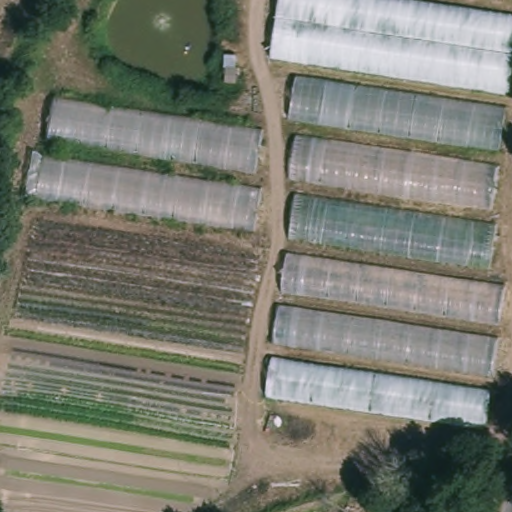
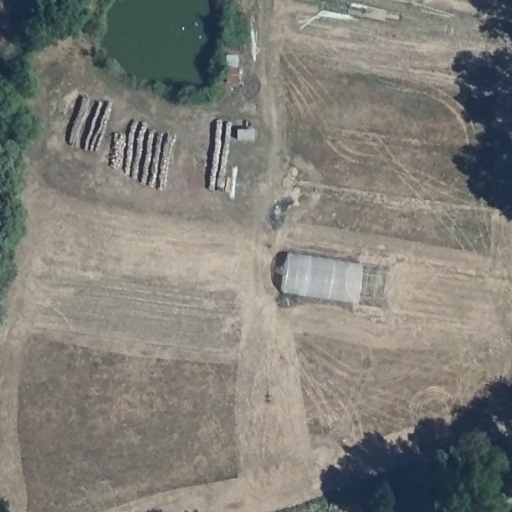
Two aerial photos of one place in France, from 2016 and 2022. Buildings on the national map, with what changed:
demolished [(285,182),(300,70),(271,64),(281,0),(398,0),(512,16),(512,85),(500,166),(509,168),(490,284),(506,287),(486,431),(270,400),(301,185),(285,182)]
demolished [(52,101),(264,134),(253,187),(262,190),(254,234),(37,202),(52,101)]

